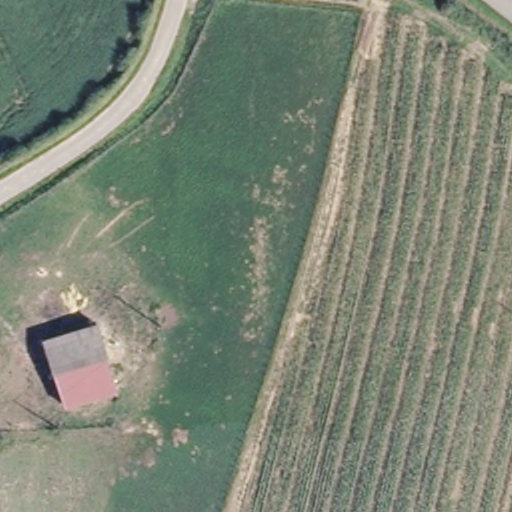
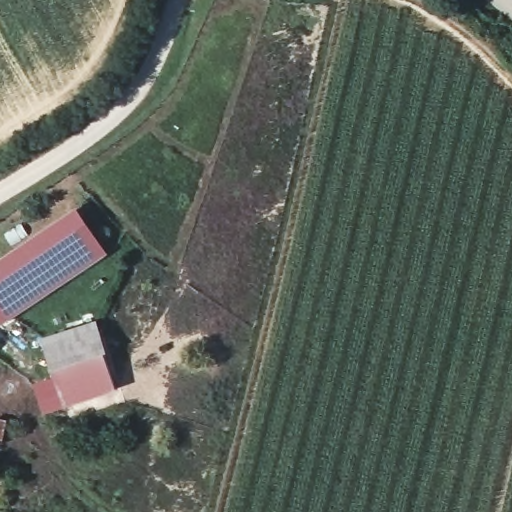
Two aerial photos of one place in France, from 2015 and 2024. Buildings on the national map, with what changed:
new [(0,260),(78,208),(109,255),(2,324),(0,321),(0,260)]
unchanged [(40,337),(93,319),(104,352),(49,365),(40,337)]
unchanged [(104,352),(113,380),(59,397),(49,365),(104,352)]

